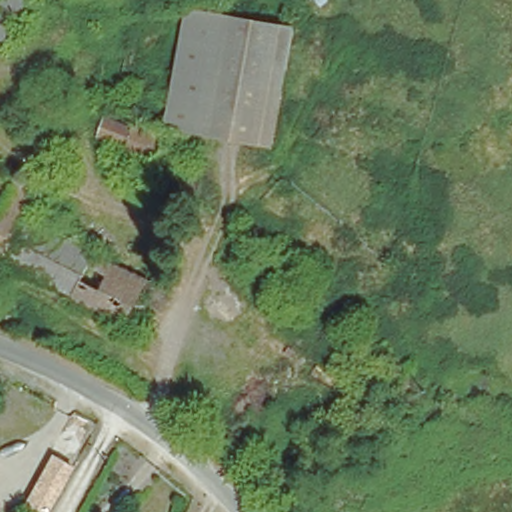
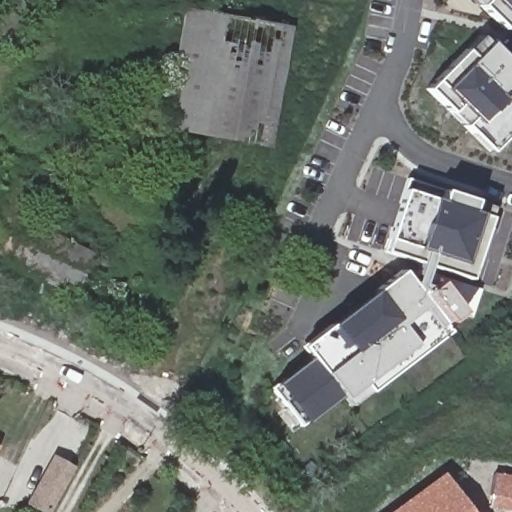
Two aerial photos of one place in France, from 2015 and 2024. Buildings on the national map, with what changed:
demolished [(0,41),(0,0),(25,0),(6,43),(0,41)]
new [(501,28),(474,0),(512,0),(512,17),(501,28)]
unchanged [(167,127),(189,9),(228,17),(292,28),(270,144),(167,127)]
new [(481,34),(512,65),(512,128),(489,150),(427,86),(481,34)]
unchanged [(151,170),(122,160),(124,152),(110,147),(113,143),(98,136),(105,119),(133,129),(135,124),(164,134),(151,170)]
new [(406,177),(491,205),(468,277),(384,249),(406,177)]
unchanged [(38,204),(151,261),(139,287),(25,229),(0,217),(0,213),(12,190),(38,204)]
unchanged [(139,287),(162,299),(143,336),(6,267),(0,264),(0,217),(25,229),(139,287)]
new [(329,322),(330,323),(399,268),(409,281),(418,260),(429,263),(421,284),(429,286),(438,280),(461,311),(448,321),(446,318),(439,324),(424,302),(356,355),(350,346),(320,368),(302,345),(329,322)]
new [(309,354),(320,368),(350,346),(356,355),(424,302),(444,331),(347,402),(340,394),(301,424),(272,386),(309,354)]
unchanged [(48,512),(31,503),(54,457),(70,465),(48,512)]
new [(473,512),(389,512),(443,472),(473,512)]
new [(489,508),(494,473),(512,476),(512,511),(489,508)]

